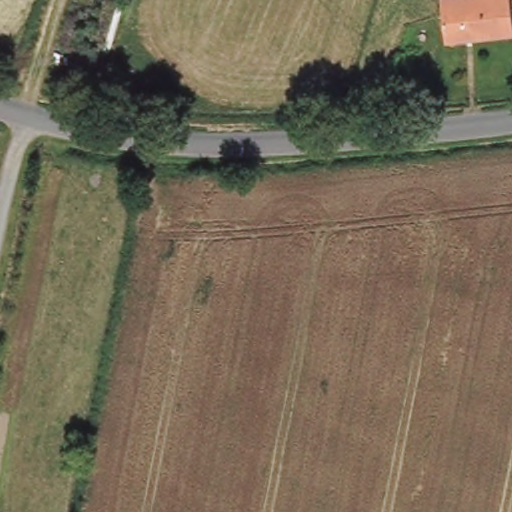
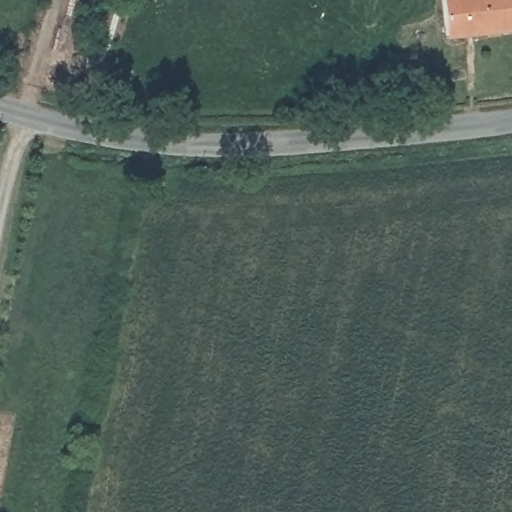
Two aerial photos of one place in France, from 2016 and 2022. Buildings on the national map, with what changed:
unchanged [(512,31),(449,39),(443,0),(512,0),(512,31)]

